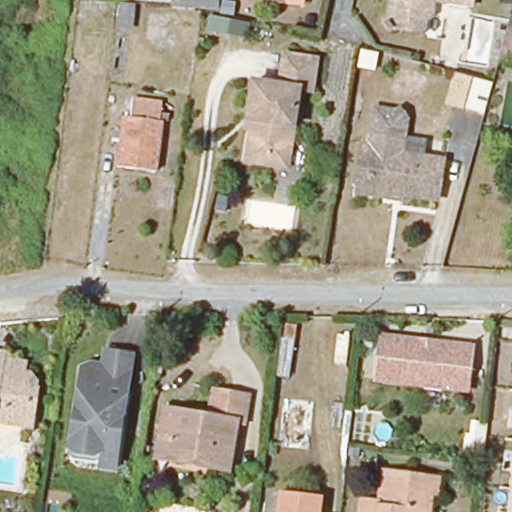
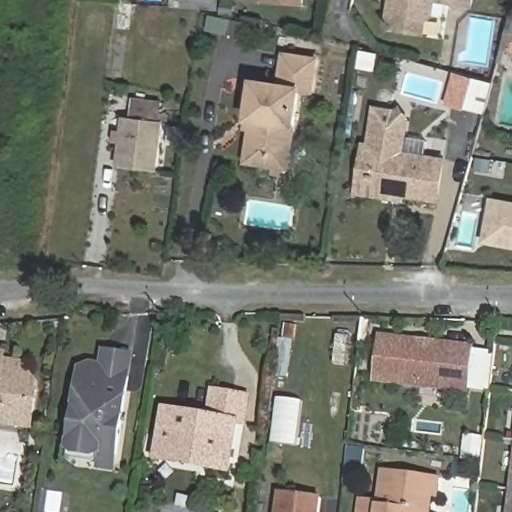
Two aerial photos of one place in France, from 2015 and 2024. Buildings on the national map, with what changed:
unchanged [(171,10),(172,0),(218,0),(217,13),(171,10)]
unchanged [(281,1),(268,0),(303,0),(303,3),(281,1)]
unchanged [(433,16),(427,20),(425,34),(397,30),(395,32),(386,22),(389,20),(392,0),(474,0),(473,6),(436,1),(433,16)]
unchanged [(511,0),(511,4),(500,4),(500,0),(511,0)]
unchanged [(133,34),(116,32),(120,4),(136,5),(133,34)]
unchanged [(236,21),(233,34),(220,32),(223,17),(236,21)]
unchanged [(509,68),(500,66),(512,22),(512,23),(512,57),(509,68)]
unchanged [(268,151),(266,166),(242,162),(247,121),(243,120),(250,82),(276,86),(281,56),(312,60),(307,92),(296,91),(285,154),(268,151)]
unchanged [(484,117),(445,105),(454,71),(495,84),(484,117)]
unchanged [(156,171),(119,167),(125,117),(131,118),(134,99),(163,103),(160,121),(162,122),(156,171)]
unchanged [(358,192),(365,145),(371,146),(373,132),(377,108),(397,112),(403,120),(400,137),(405,138),(403,153),(445,160),(438,201),(403,195),(402,200),(358,192)]
new [(491,197),(512,201),(512,249),(483,244),(491,197)]
unchanged [(450,388),(377,380),(382,337),(473,347),(469,377),(468,391),(450,388)]
unchanged [(106,447),(98,450),(81,447),(75,442),(81,402),(82,392),(86,362),(95,359),(110,362),(112,348),(137,352),(134,372),(122,449),(120,464),(104,462),(106,447)]
unchanged [(4,355),(3,362),(25,365),(24,374),(31,375),(37,383),(36,390),(38,391),(36,406),(33,427),(0,423),(0,354),(4,355)]
unchanged [(207,452),(164,445),(170,406),(205,412),(210,386),(244,392),(240,417),(233,417),(225,465),(205,461),(207,452)]
unchanged [(429,491),(426,512),(355,512),(357,498),(376,500),(380,470),(435,477),(433,492),(429,491)]
unchanged [(512,473),(512,512),(508,512),(512,473)]
unchanged [(282,499),(322,504),(320,512),(280,512),(282,499)]

